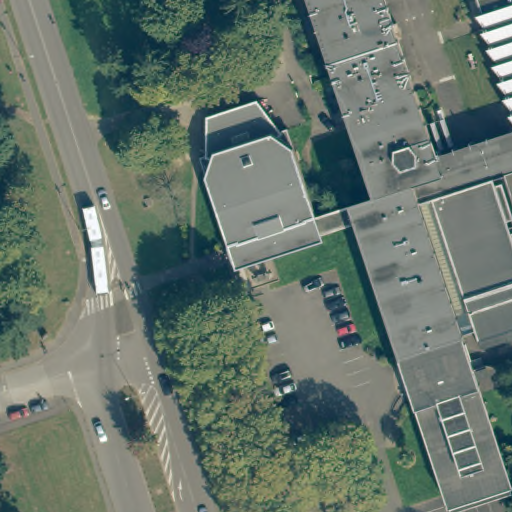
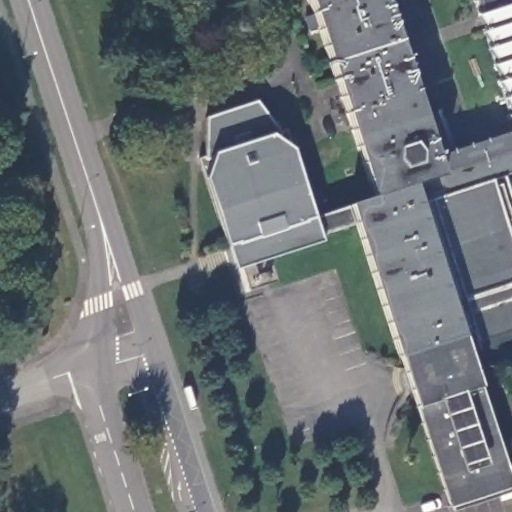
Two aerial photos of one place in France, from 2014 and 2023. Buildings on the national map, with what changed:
unchanged [(495,182),(501,179),(512,212),(512,215),(507,217),(511,229),(512,229),(512,335),(481,345),(475,327),(463,331),(491,416),(493,421),(509,470),(512,480),(512,482),(474,494),(449,503),(448,497),(446,491),(356,220),(244,257),(238,239),(228,243),(199,154),(205,152),(205,143),(207,113),(256,97),(269,114),(279,128),(287,125),(302,174),(306,186),(309,196),(315,194),(317,199),(311,201),(315,214),(373,194),(364,165),(358,167),(357,163),(362,161),(356,143),(335,78),(309,0),(386,0),(415,86),(443,172),(512,150),(512,168),(492,175),(495,182)]
unchanged [(509,93),(497,78),(503,76),(492,61),(498,60),(486,44),(492,43),(481,28),(487,26),(476,13),(482,11),(478,0),(512,0),(512,107),(503,95),(509,93)]
unchanged [(512,111),(512,117),(508,112),(512,111)]
unchanged [(452,135),(460,162),(457,163),(448,136),(452,135)]
unchanged [(450,165),(447,166),(438,139),(442,138),(450,165)]

